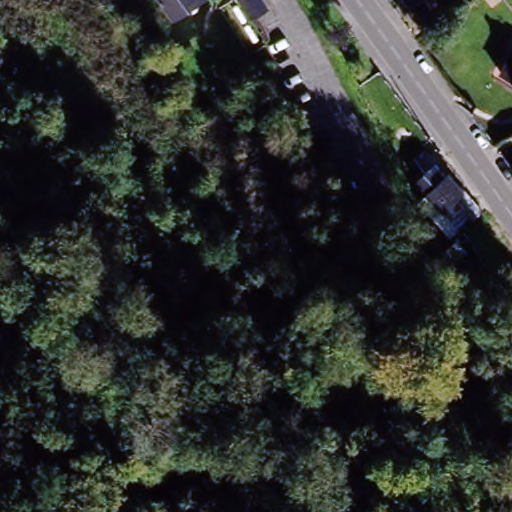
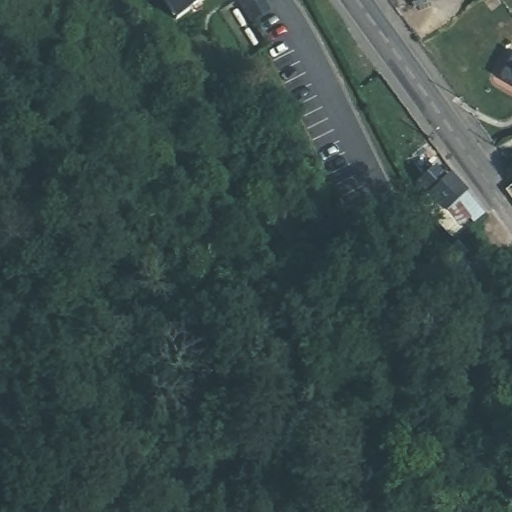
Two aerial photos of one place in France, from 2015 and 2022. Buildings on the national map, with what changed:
unchanged [(163,0),(194,0),(173,15),(163,0)]
unchanged [(493,75),(507,52),(512,55),(512,86),(498,78),(493,75)]
unchanged [(425,197),(421,192),(413,182),(421,176),(431,170),(438,179),(441,176),(458,192),(448,200),(463,219),(451,229),(445,235),(418,203),(425,197)]

